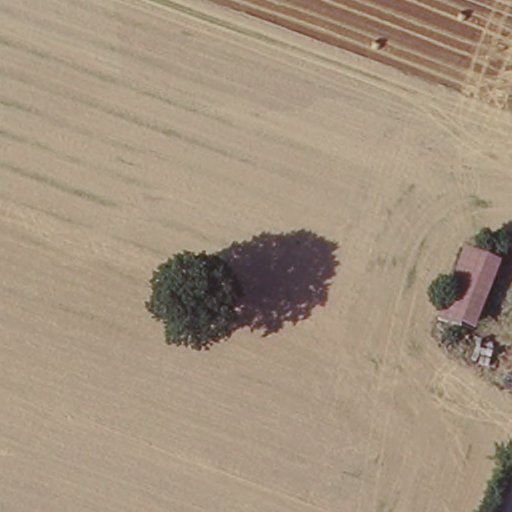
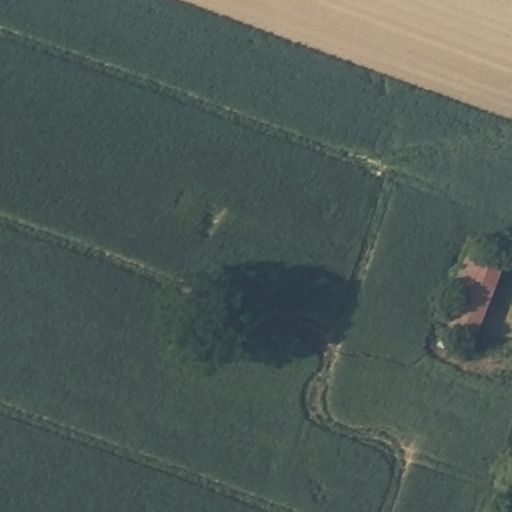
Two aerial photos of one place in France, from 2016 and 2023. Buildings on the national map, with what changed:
unchanged [(505,264),(478,337),(442,324),(469,252),(505,264)]

